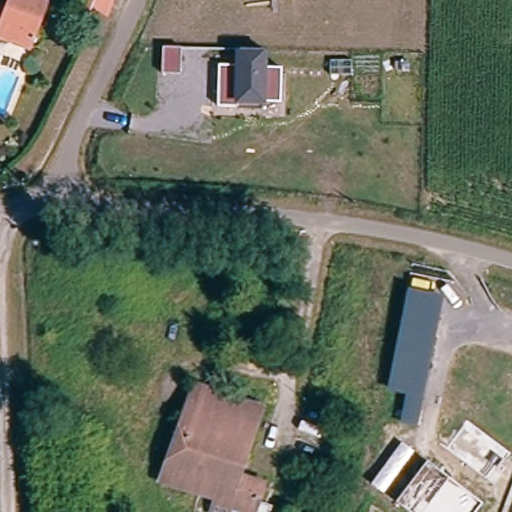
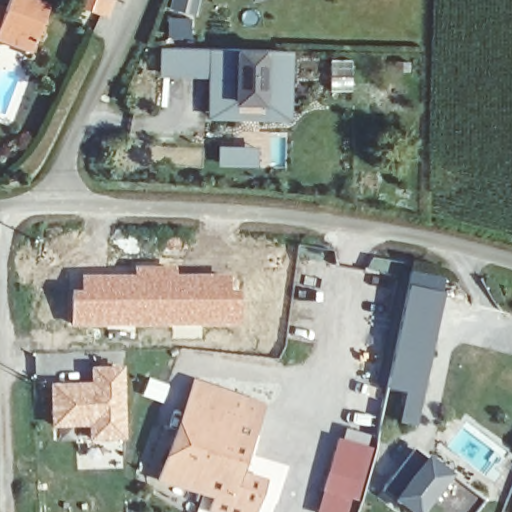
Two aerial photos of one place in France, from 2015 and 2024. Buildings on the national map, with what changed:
unchanged [(0,42),(0,16),(4,18),(11,0),(12,0),(46,13),(31,54),(0,42)]
unchanged [(106,19),(92,14),(98,0),(111,5),(106,19)]
unchanged [(249,0),(253,0),(249,1),(249,0)]
unchanged [(233,64),(234,49),(267,49),(265,68),(282,66),(281,103),(263,103),(263,109),(217,107),(218,64),(233,64)]
new [(78,290),(78,274),(131,274),(132,265),(176,265),(176,273),(232,273),(232,290),(236,291),(236,327),(191,329),(70,328),(69,290),(78,290)]
unchanged [(442,293),(416,426),(398,423),(404,393),(387,389),(407,286),(442,293)]
new [(88,444),(88,428),(51,431),(49,385),(89,383),(89,369),(123,367),(126,442),(88,444)]
unchanged [(244,474),(268,482),(258,512),(215,512),(218,498),(167,480),(202,384),(266,406),(244,474)]
demolished [(336,478),(300,468),(313,424),(349,434),(336,478)]
new [(337,438),(341,439),(344,428),(371,435),(368,446),(375,447),(359,503),(352,502),(349,512),(318,512),(337,438)]
unchanged [(480,501),(472,512),(409,512),(394,501),(425,459),(446,476),(480,501)]

